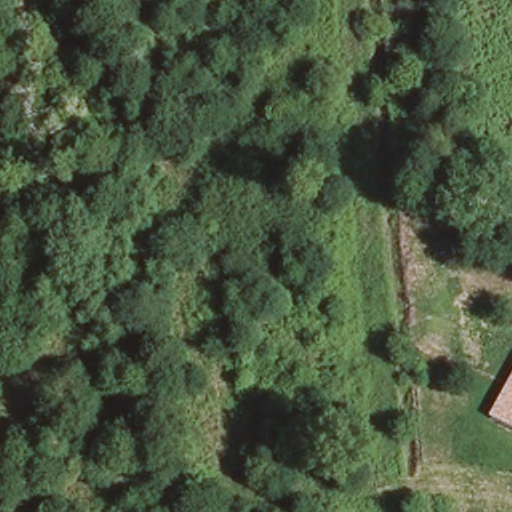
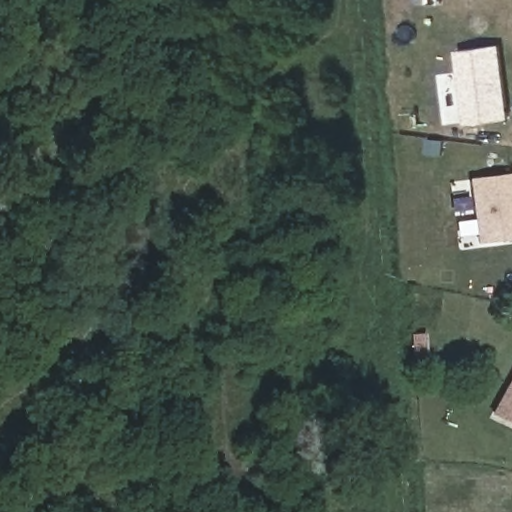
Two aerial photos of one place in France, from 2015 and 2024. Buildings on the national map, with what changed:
new [(510,117),(466,123),(457,50),(500,44),(510,117)]
new [(512,174),(512,240),(478,244),(470,179),(512,174)]
unchanged [(512,382),(512,422),(495,412),(512,382)]

